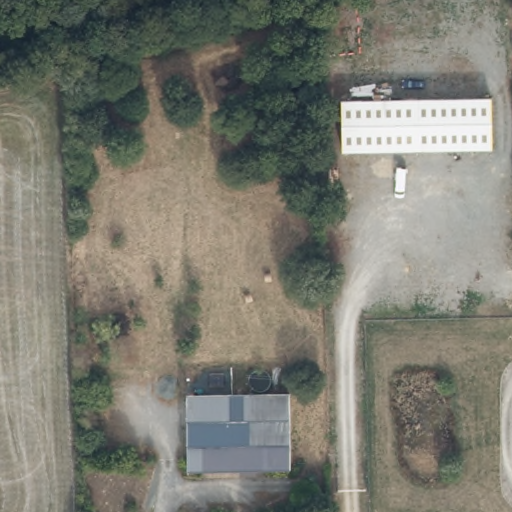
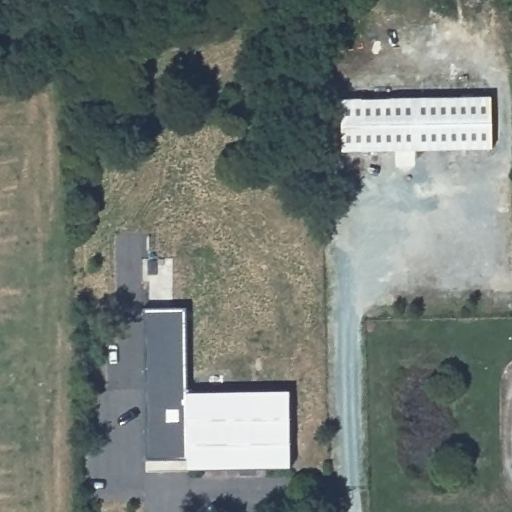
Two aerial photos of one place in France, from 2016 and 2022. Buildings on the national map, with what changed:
unchanged [(494,97),(494,150),(340,154),(341,100),(494,97)]
new [(146,460),(144,307),(185,307),(185,397),(189,397),(189,459),(146,460)]
unchanged [(189,397),(293,395),(294,470),(189,469),(189,397)]

